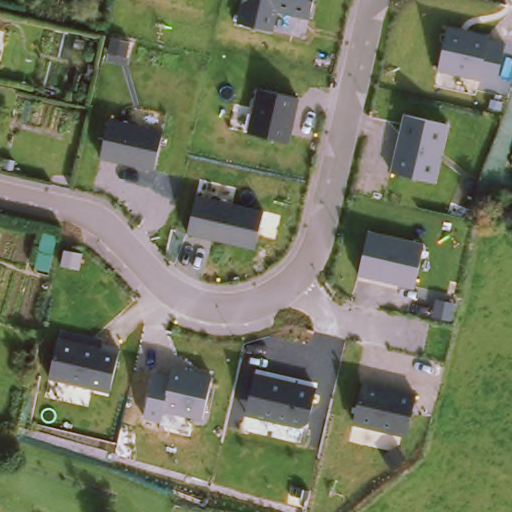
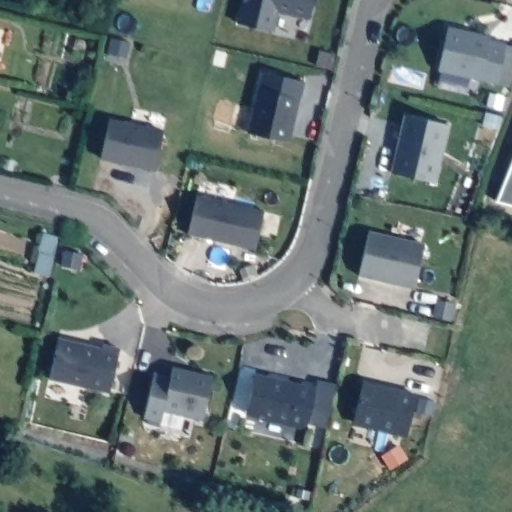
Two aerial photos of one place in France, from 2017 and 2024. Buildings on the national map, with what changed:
unchanged [(238,22),(243,0),(314,0),(310,17),(277,10),(273,30),(238,22)]
unchanged [(497,84),(439,70),(448,26),(488,35),(487,37),(505,42),(497,84)]
unchanged [(289,144),(247,134),(257,88),(299,100),(289,144)]
unchanged [(445,127),(432,186),(389,177),(401,118),(445,127)]
unchanged [(153,170),(100,159),(110,120),(163,129),(153,170)]
new [(495,204),(512,159),(512,209),(495,204)]
unchanged [(265,210),(257,249),(189,234),(197,195),(265,210)]
unchanged [(421,248),(411,291),(355,278),(365,235),(421,248)]
unchanged [(99,349),(100,345),(117,349),(107,392),(46,378),(55,340),(99,349)]
unchanged [(200,381),(190,424),(150,415),(160,372),(200,381)]
unchanged [(317,387),(309,421),(300,427),(245,416),(255,373),(317,387)]
unchanged [(360,387),(394,395),(394,393),(414,398),(405,438),(372,431),(373,430),(351,425),(360,387)]

